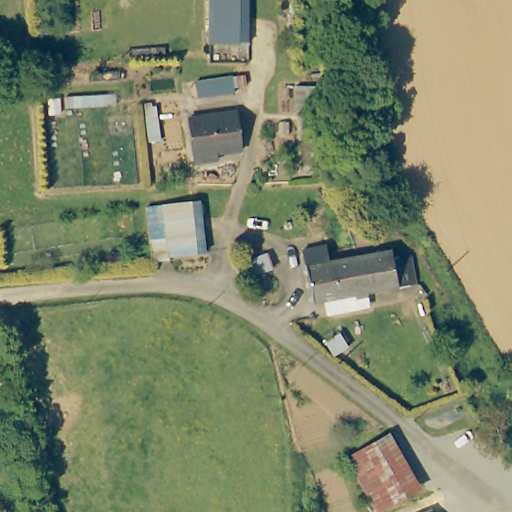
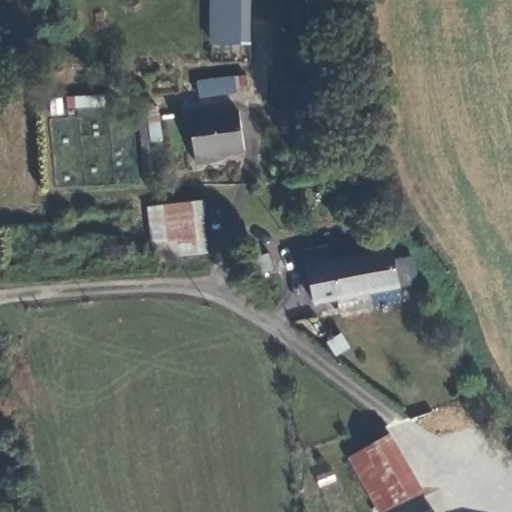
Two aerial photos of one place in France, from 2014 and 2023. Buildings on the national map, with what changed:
unchanged [(213,0),(253,0),(253,43),(213,43),(213,0)]
unchanged [(232,89),(195,89),(195,67),(232,68),(232,89)]
unchanged [(194,161),(193,151),(193,111),(243,112),(244,150),(216,151),(216,161),(194,161)]
unchanged [(205,247),(154,254),(149,205),(198,199),(205,247)]
unchanged [(399,265),(411,262),(416,278),(397,285),(315,302),(303,247),(327,241),(331,259),(396,247),(399,265)]
unchanged [(415,479),(375,509),(342,458),(381,430),(415,479)]
unchanged [(436,512),(443,509),(444,512),(436,512)]

